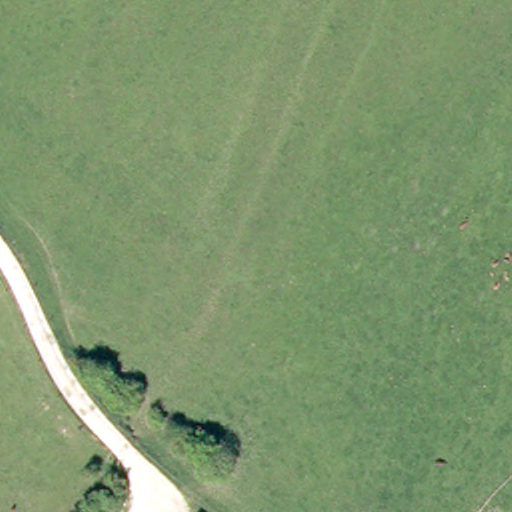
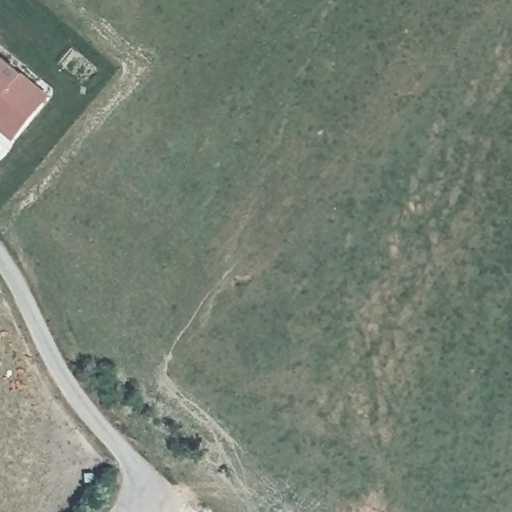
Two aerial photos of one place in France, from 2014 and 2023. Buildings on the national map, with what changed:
new [(0,129),(0,52),(51,95),(14,141),(0,129)]

